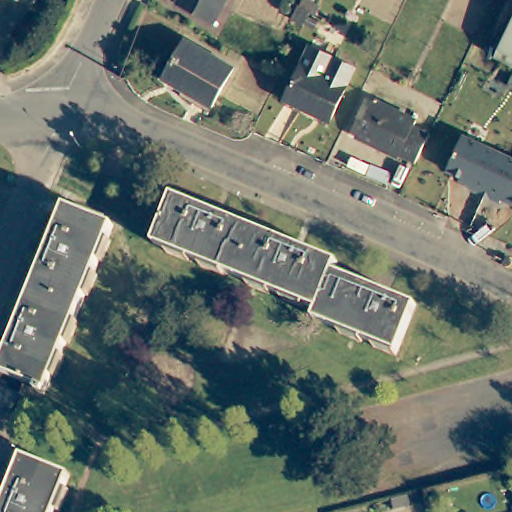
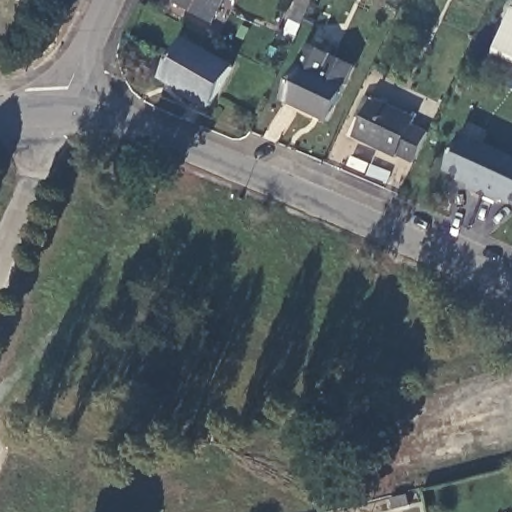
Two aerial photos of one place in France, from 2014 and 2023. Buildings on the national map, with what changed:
unchanged [(208,22),(171,3),(173,0),(219,0),(208,22)]
unchanged [(301,0),(316,0),(313,5),(301,0)]
unchanged [(512,21),(512,70),(493,61),(512,21)]
unchanged [(213,110),(163,81),(185,40),(235,68),(213,110)]
unchanged [(329,129),(285,108),(310,54),(356,75),(329,129)]
unchanged [(425,137),(411,167),(395,159),(394,161),(352,141),(369,103),(412,123),(410,129),(425,137)]
unchanged [(512,157),(512,200),(499,194),(496,201),(485,195),(466,187),(469,181),(443,169),(459,133),(504,154),(512,157)]
demolished [(309,323),(313,314),(151,249),(171,200),(334,266),(331,275),(357,286),(412,308),(393,356),(309,323)]
demolished [(38,278),(65,211),(73,214),(101,226),(111,230),(47,395),(25,385),(2,375),(30,305),(38,278)]
demolished [(12,485),(21,465),(66,482),(54,512),(2,512),(8,496),(12,485)]

